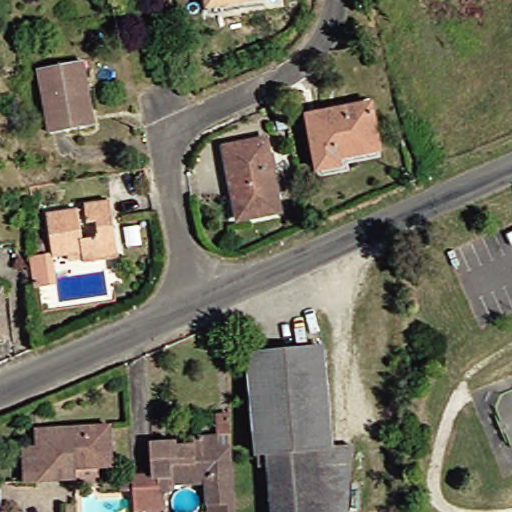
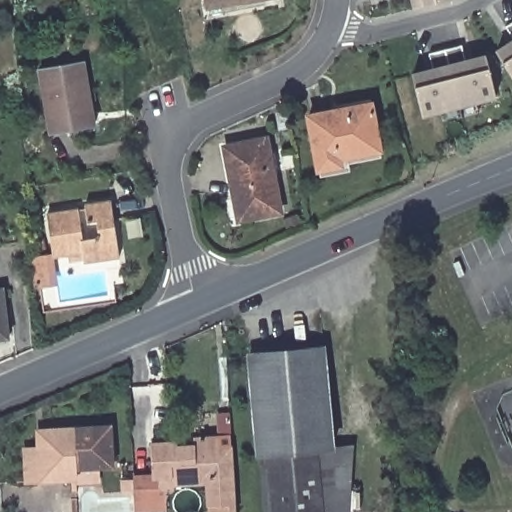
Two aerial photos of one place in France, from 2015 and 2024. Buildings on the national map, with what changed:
unchanged [(212,10),(211,0),(270,0),(212,10)]
new [(424,6),(412,9),(410,0),(452,0),(424,6)]
new [(512,23),(512,37),(505,27),(512,23)]
new [(512,40),(512,75),(496,51),(512,40)]
new [(422,117),(412,72),(432,69),(428,54),(461,46),(464,59),(485,54),(496,99),(422,117)]
unchanged [(100,124),(55,131),(45,66),(89,59),(100,124)]
unchanged [(342,162),(343,167),(318,172),(307,116),(373,104),(384,154),(342,162)]
unchanged [(283,214),(237,222),(223,149),(269,140),(283,214)]
unchanged [(47,215),(78,210),(83,242),(99,240),(97,224),(88,225),(85,205),(110,202),(119,260),(84,265),(83,256),(58,258),(60,282),(41,285),(39,257),(54,256),(47,215)]
unchanged [(0,341),(0,292),(9,291),(14,340),(0,341)]
unchanged [(327,512),(272,512),(267,457),(258,458),(248,356),(325,349),(334,449),(322,450),(327,512)]
unchanged [(136,479),(153,477),(154,443),(183,442),(185,447),(196,445),(193,442),(220,441),(220,415),(232,415),(235,511),(212,511),(213,502),(207,500),(208,482),(174,483),(175,493),(169,492),(170,512),(138,512),(136,493),(125,495),(124,483),(136,482),(136,479)]
unchanged [(71,487),(71,482),(42,485),(38,430),(43,430),(111,426),(113,471),(93,472),(93,487),(71,487)]
unchanged [(327,512),(322,450),(334,449),(355,447),(353,512),(327,512)]

